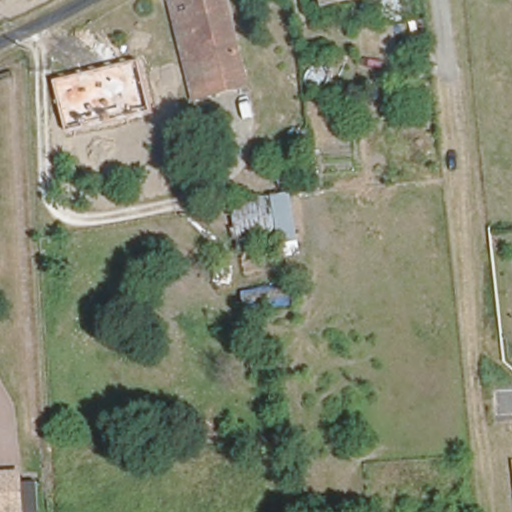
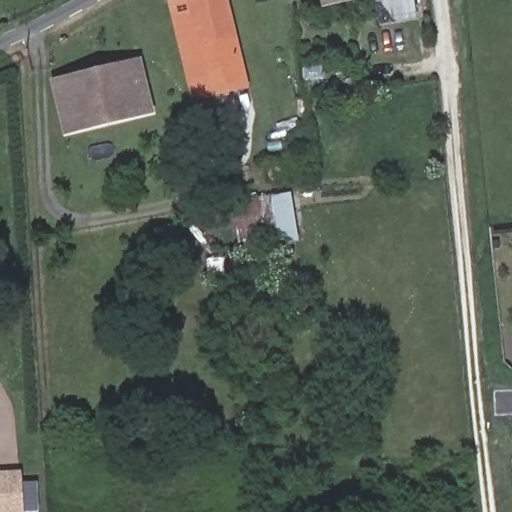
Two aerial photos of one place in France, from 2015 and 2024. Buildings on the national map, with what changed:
unchanged [(212,97),(211,94),(195,97),(177,19),(174,6),(189,2),(188,0),(223,0),(240,75),(244,90),(212,97)]
unchanged [(328,10),(326,0),(372,0),(328,10)]
unchanged [(384,21),(381,0),(401,0),(403,19),(384,21)]
new [(64,136),(50,80),(141,57),(155,114),(64,136)]
unchanged [(291,192),(297,241),(238,249),(232,200),(291,192)]
unchanged [(292,284),(295,303),(243,310),(240,288),(292,284)]
unchanged [(22,512),(0,512),(0,482),(22,482),(22,512)]

